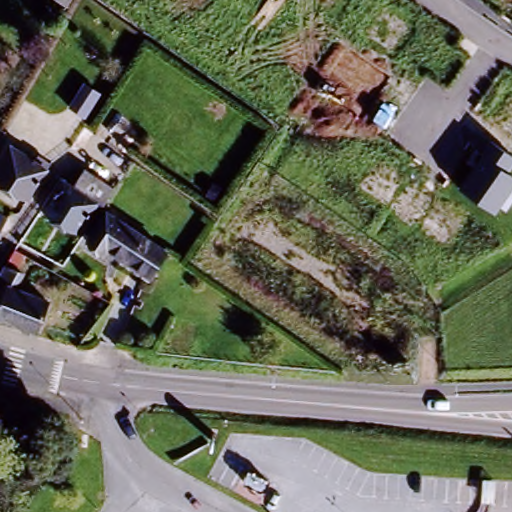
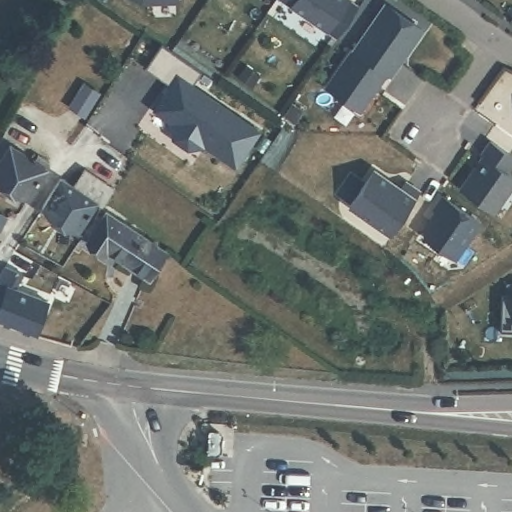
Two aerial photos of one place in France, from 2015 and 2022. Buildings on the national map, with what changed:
new [(143,5),(133,0),(180,0),(180,5),(143,5)]
new [(260,0),(278,0),(272,9),(260,0)]
new [(278,0),(346,0),(349,2),(320,44),(271,10),(272,9),(278,0)]
new [(384,75),(349,50),(381,4),(416,29),(384,75)]
new [(355,111),(320,87),(347,49),(382,73),(355,111)]
new [(259,136),(236,170),(204,148),(203,150),(188,152),(174,143),(171,128),(173,126),(155,114),(171,91),(146,74),(163,50),(205,79),(195,93),(259,136)]
new [(251,90),(239,82),(247,70),(259,78),(251,90)]
unchanged [(81,86),(98,98),(82,122),(66,111),(81,86)]
unchanged [(492,139),(512,155),(512,165),(507,172),(512,176),(512,187),(494,213),(458,184),(492,139)]
unchanged [(0,151),(3,146),(31,164),(35,158),(44,164),(41,170),(24,198),(0,183),(0,151)]
new [(369,171),(396,189),(401,182),(415,191),(386,233),(345,205),(369,171)]
unchanged [(79,190),(86,181),(103,193),(96,202),(79,190)]
unchanged [(95,207),(78,234),(42,212),(59,184),(95,207)]
new [(438,215),(436,213),(445,200),(482,226),(456,263),(426,241),(424,234),(438,215)]
unchanged [(148,282),(136,274),(103,251),(100,254),(89,247),(84,243),(106,209),(108,210),(156,245),(154,248),(166,255),(148,282)]
unchanged [(0,320),(0,268),(18,276),(13,290),(44,302),(33,333),(0,320)]
new [(495,330),(497,293),(512,294),(512,331),(495,330)]

